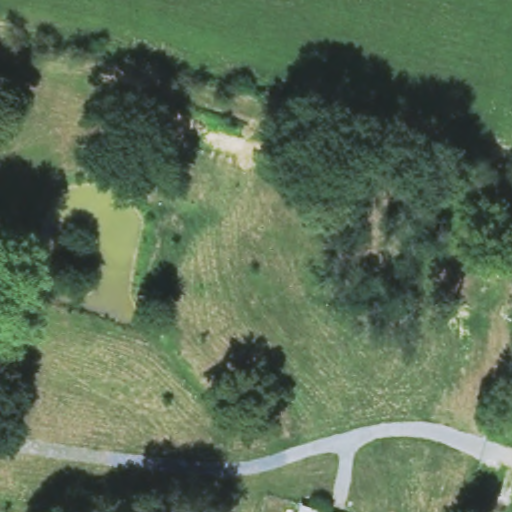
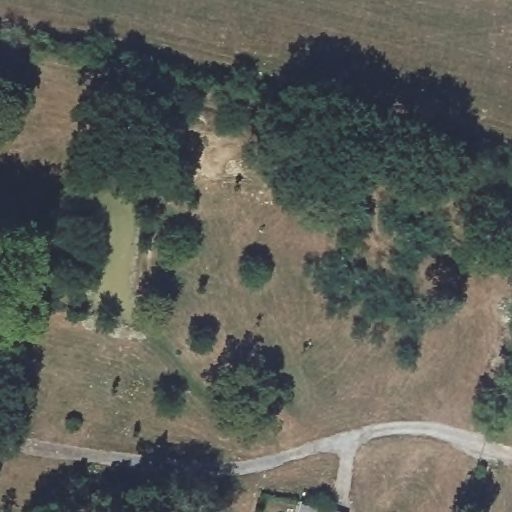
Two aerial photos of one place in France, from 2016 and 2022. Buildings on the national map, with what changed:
unchanged [(339,512),(301,512),(304,502),(339,512)]

